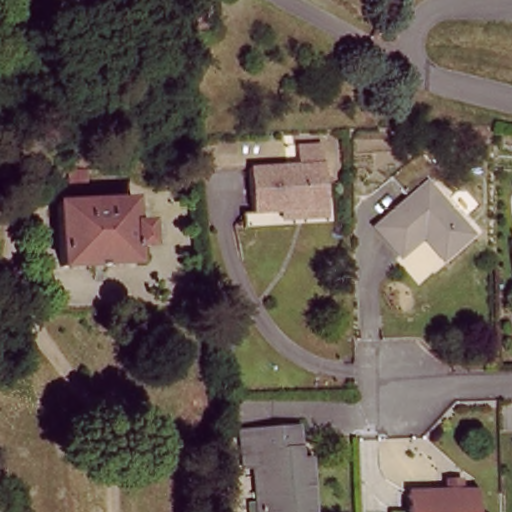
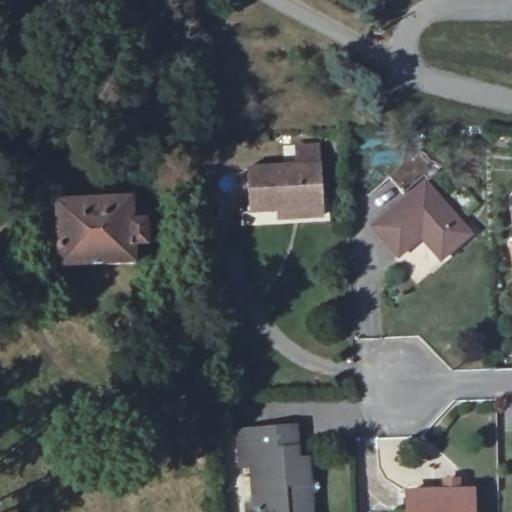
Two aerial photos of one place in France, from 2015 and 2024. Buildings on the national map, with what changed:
unchanged [(419,163),(442,184),(432,194),(424,187),(403,209),(388,196),(419,163)]
unchanged [(250,225),(249,170),(326,170),(327,214),(281,214),(281,225),(250,225)]
unchanged [(379,242),(428,196),(470,241),(447,264),(427,243),(401,267),(379,242)]
unchanged [(60,273),(56,208),(85,206),(85,200),(101,199),(101,206),(130,204),(131,229),(145,228),(146,250),(134,251),(134,269),(60,273)]
unchanged [(241,472),(239,433),(270,432),(271,457),(301,456),(302,469),(314,470),(314,512),(255,512),(253,472),(241,472)]
unchanged [(472,494),(473,512),(405,512),(405,498),(472,494)]

